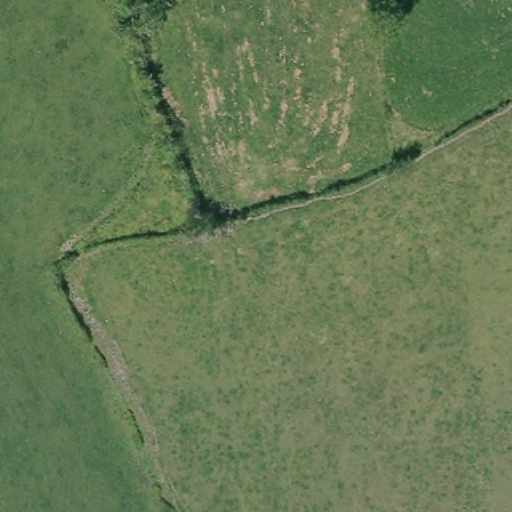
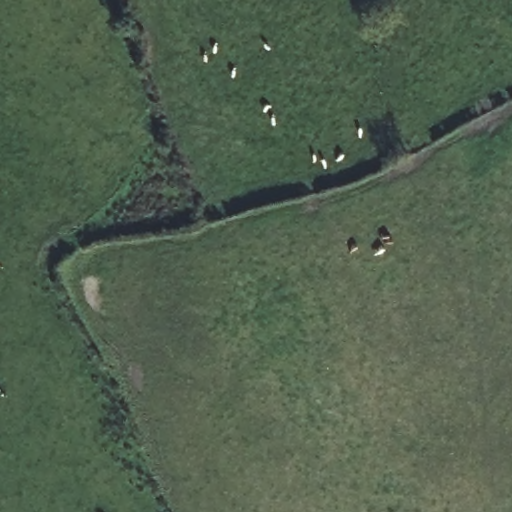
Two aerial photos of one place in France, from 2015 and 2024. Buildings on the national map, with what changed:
[]

